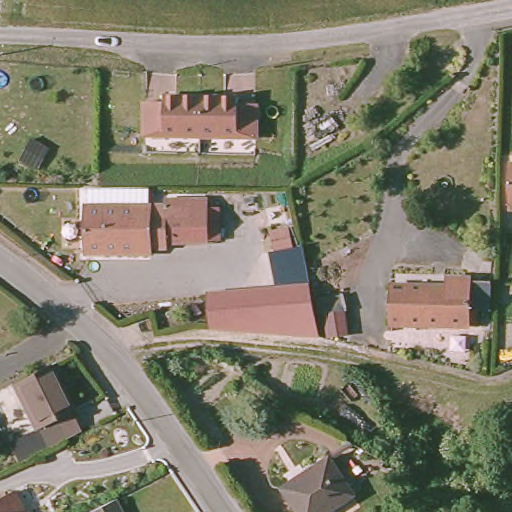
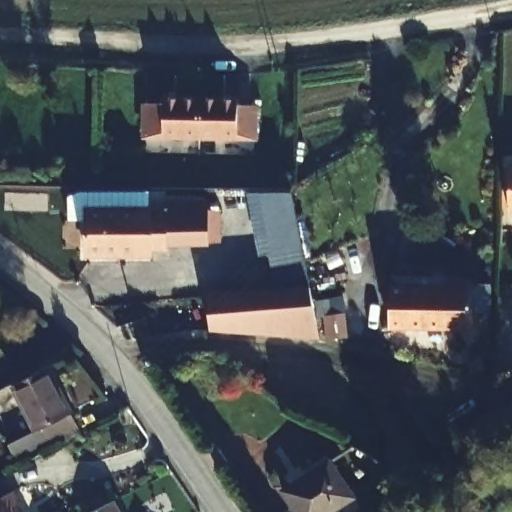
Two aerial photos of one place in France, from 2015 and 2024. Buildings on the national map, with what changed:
unchanged [(200,99),(200,105),(200,139),(145,138),(146,104),(163,104),(163,97),(200,99)]
unchanged [(238,99),(238,106),(255,106),(255,140),(200,139),(200,105),(200,99),(238,99)]
unchanged [(506,169),(512,169),(512,212),(506,212),(506,169)]
new [(302,248),(293,250),(288,227),(270,230),(274,252),(269,252),(260,256),(247,192),(293,192),(302,248)]
unchanged [(86,212),(88,212),(88,194),(150,195),(149,212),(164,212),(164,206),(205,207),(205,247),(165,247),(165,254),(150,254),(150,260),(86,259),(86,212)]
unchanged [(293,250),(302,248),(310,284),(318,338),(210,329),(207,293),(276,286),(269,252),(274,252),(270,230),(288,227),(293,250)]
unchanged [(388,286),(445,287),(445,280),(471,280),(470,326),(389,326),(388,286)]
unchanged [(348,312),(345,312),(348,335),(325,338),(321,314),(318,298),(343,292),(348,312)]
unchanged [(46,371),(70,417),(35,434),(12,388),(46,371)]
unchanged [(364,452),(358,462),(348,457),(354,446),(364,452)]
unchanged [(324,512),(296,512),(280,490),(328,457),(351,494),(324,512)]
unchanged [(20,512),(0,512),(0,498),(10,492),(20,512)]
unchanged [(90,512),(113,501),(119,512),(90,512)]

